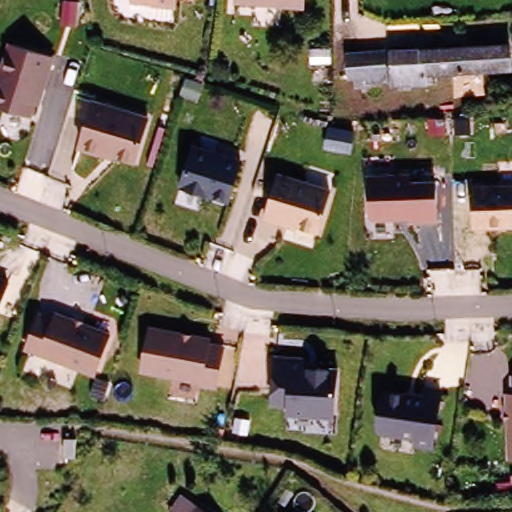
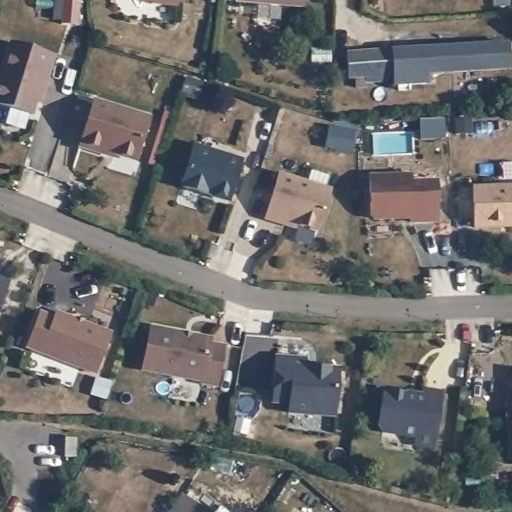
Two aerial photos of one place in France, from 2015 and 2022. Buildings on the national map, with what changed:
unchanged [(196,2),(144,0),(196,0),(196,2)]
unchanged [(305,9),(234,5),(234,0),(305,0),(305,9)]
unchanged [(4,42),(50,55),(36,114),(0,104),(0,57),(4,42)]
unchanged [(512,50),(512,56),(507,57),(508,70),(430,76),(431,80),(425,80),(425,84),(393,86),(390,52),(507,44),(507,50),(512,50)]
unchanged [(386,82),(369,84),(370,89),(355,89),(355,80),(347,80),(345,57),(385,55),(386,82)]
unchanged [(149,112),(133,163),(77,146),(92,95),(149,112)]
unchanged [(332,117),(332,122),(335,137),(314,140),(312,119),(332,117)]
unchanged [(194,144),(241,155),(229,199),(203,192),(201,196),(179,186),(194,144)]
unchanged [(278,172),(328,189),(317,230),(265,214),(278,172)]
unchanged [(370,176),(435,177),(435,218),(410,221),(410,219),(370,220),(370,176)]
unchanged [(512,184),(512,224),(474,225),(475,184),(512,184)]
unchanged [(4,282),(0,296),(0,282),(4,282)]
unchanged [(37,312),(49,316),(52,311),(70,318),(74,316),(109,330),(94,373),(24,345),(37,312)]
unchanged [(149,325),(210,336),(210,345),(224,348),(216,383),(142,371),(149,325)]
unchanged [(275,357),(279,353),(305,355),(304,362),(337,366),(333,416),(287,412),(285,403),(269,400),(275,357)]
unchanged [(509,389),(508,373),(512,373),(512,455),(506,455),(504,392),(509,389)]
unchanged [(387,386),(400,388),(400,391),(420,393),(421,387),(440,391),(430,448),(411,445),(394,435),(378,428),(387,386)]
unchanged [(203,512),(190,512),(195,507),(203,512)]

